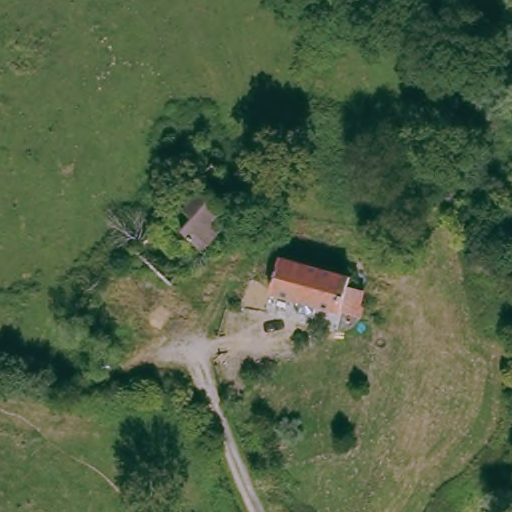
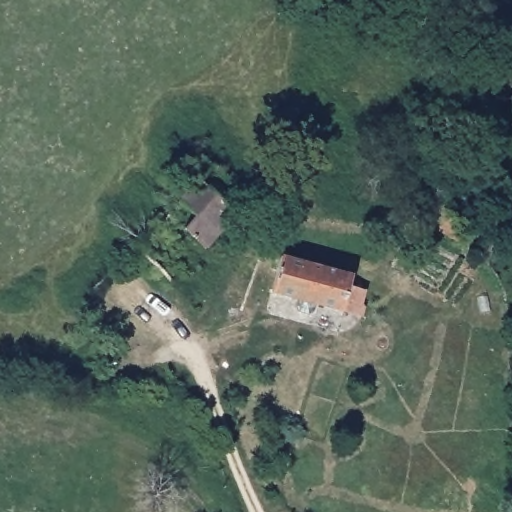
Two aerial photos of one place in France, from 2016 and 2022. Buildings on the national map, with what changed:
unchanged [(188,229),(198,216),(186,205),(206,182),(239,212),(203,246),(188,229)]
unchanged [(282,244),(352,265),(341,303),(270,283),(282,244)]

